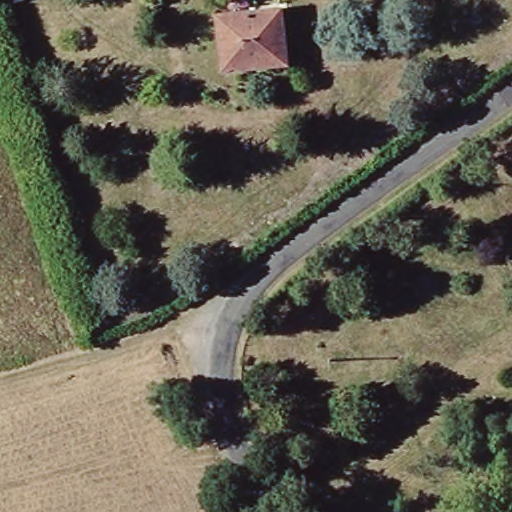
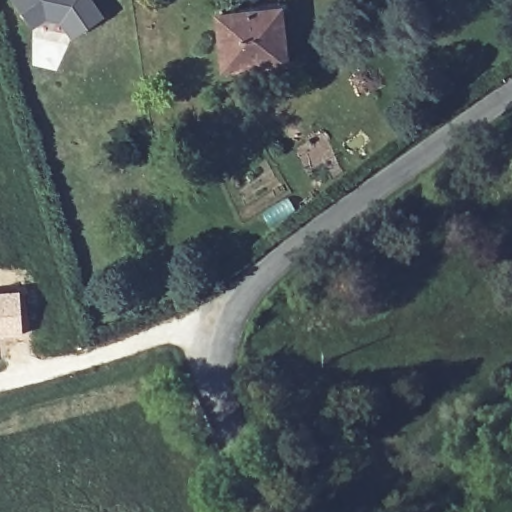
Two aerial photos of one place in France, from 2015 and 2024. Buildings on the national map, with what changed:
new [(107,11),(77,33),(66,17),(51,14),(38,23),(21,0),(99,0),(107,11)]
unchanged [(272,10),(279,60),(225,67),(219,17),(272,10)]
new [(22,333),(0,335),(0,291),(19,289),(22,333)]

